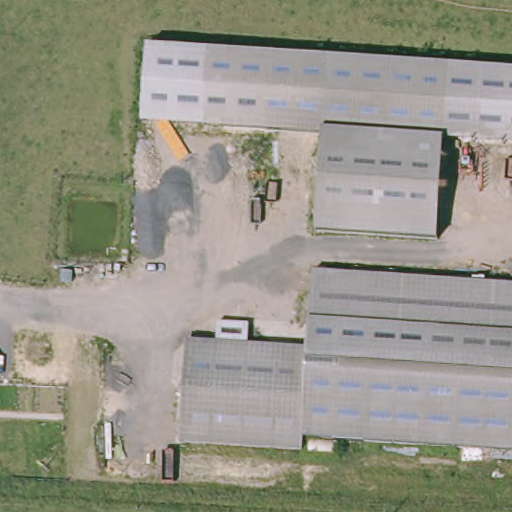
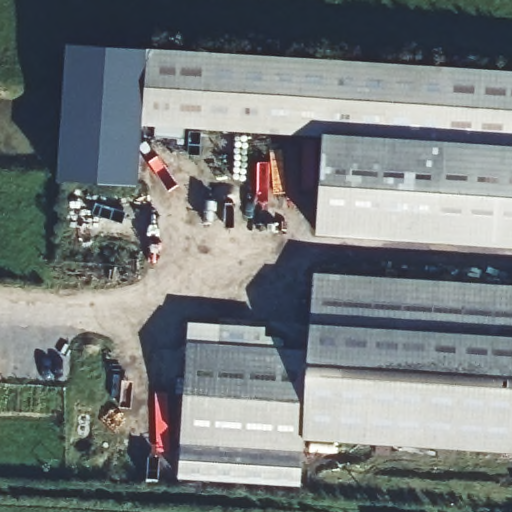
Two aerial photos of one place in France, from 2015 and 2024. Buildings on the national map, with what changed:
new [(60,178),(68,43),(148,48),(143,126),(138,184),(60,178)]
unchanged [(324,139),(143,126),(148,48),(512,70),(512,145),(444,142),(438,242),(316,234),(324,139)]
new [(438,242),(444,142),(512,145),(512,245),(438,242)]
unchanged [(296,342),(311,343),(319,264),(512,282),(512,451),(302,433),(296,491),(178,481),(191,334),(296,342)]

